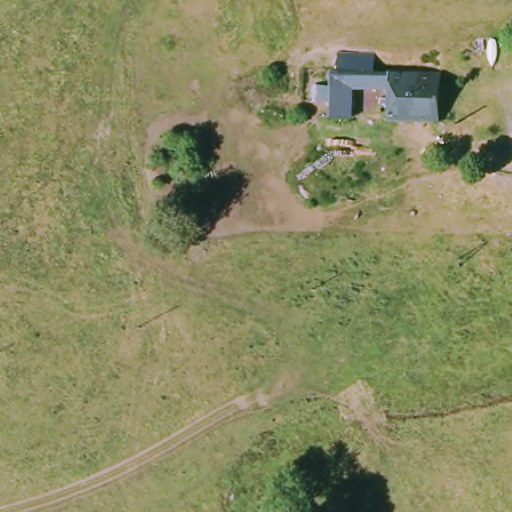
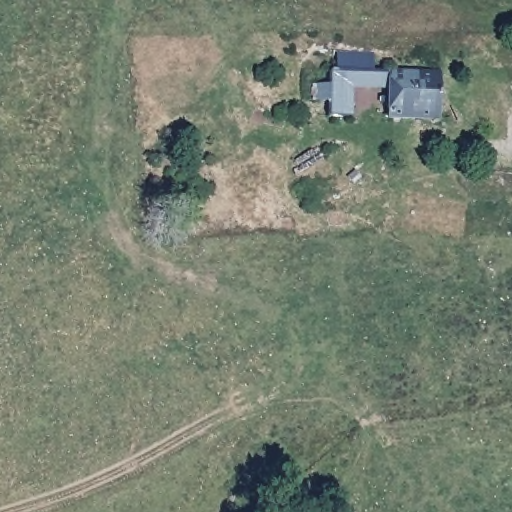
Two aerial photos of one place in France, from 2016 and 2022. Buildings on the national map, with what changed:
unchanged [(440,120),(389,118),(391,71),(442,74),(440,120)]

